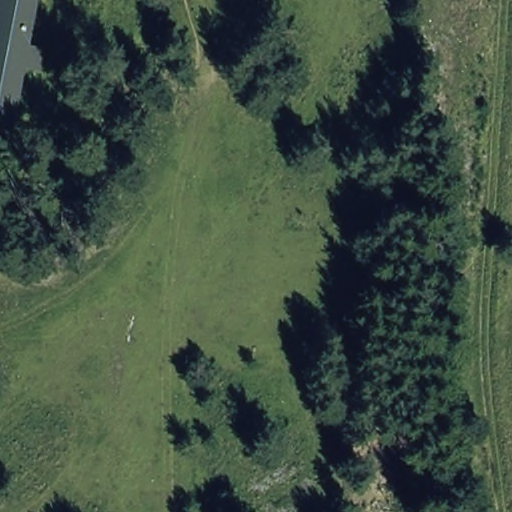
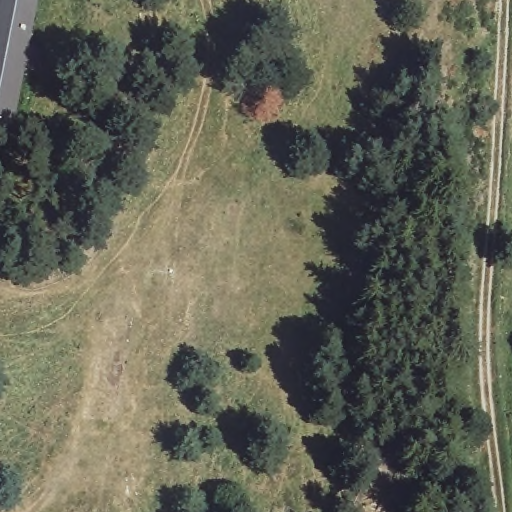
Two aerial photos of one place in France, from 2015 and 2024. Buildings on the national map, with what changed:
unchanged [(24,73),(12,132),(0,130),(0,0),(39,0),(30,44),(48,48),(43,76),(24,73)]

